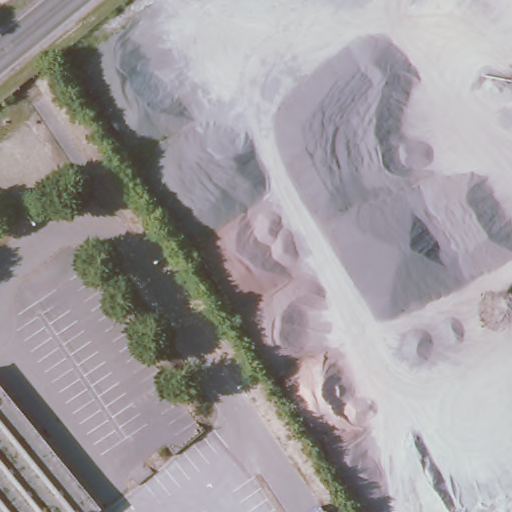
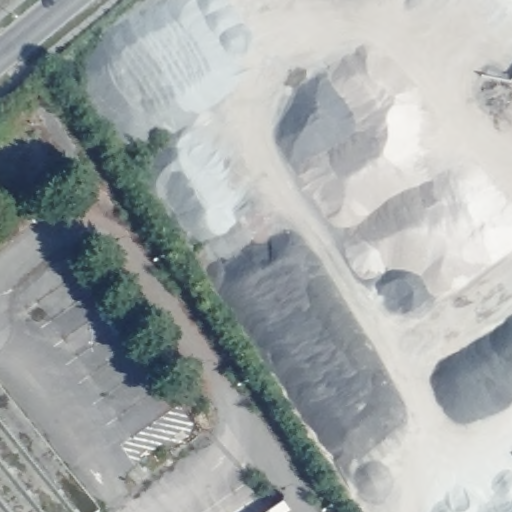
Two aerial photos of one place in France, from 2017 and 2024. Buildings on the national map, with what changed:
unchanged [(96,501),(84,512),(0,512),(0,385),(96,501)]

